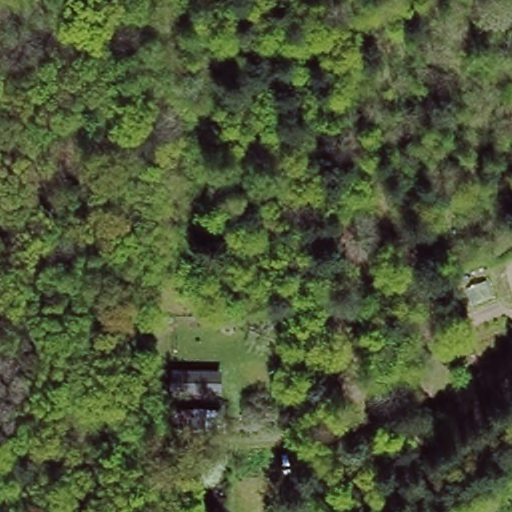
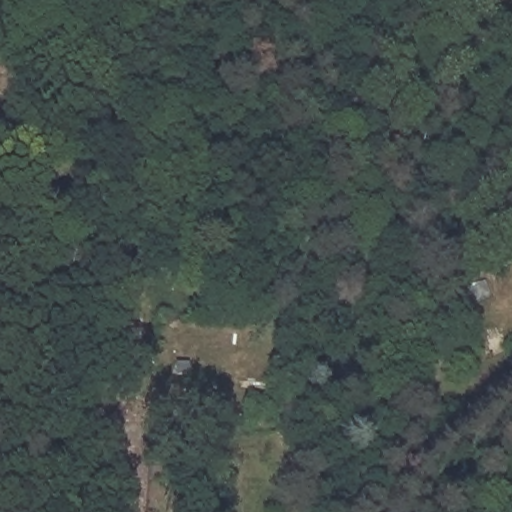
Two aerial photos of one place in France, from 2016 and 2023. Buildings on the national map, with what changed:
unchanged [(220,370),(220,396),(167,394),(167,367),(220,370)]

